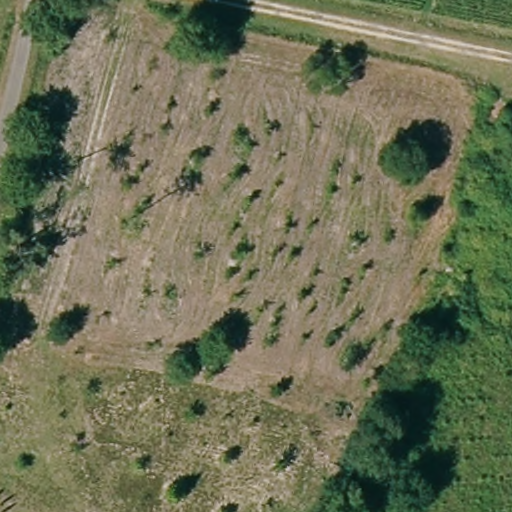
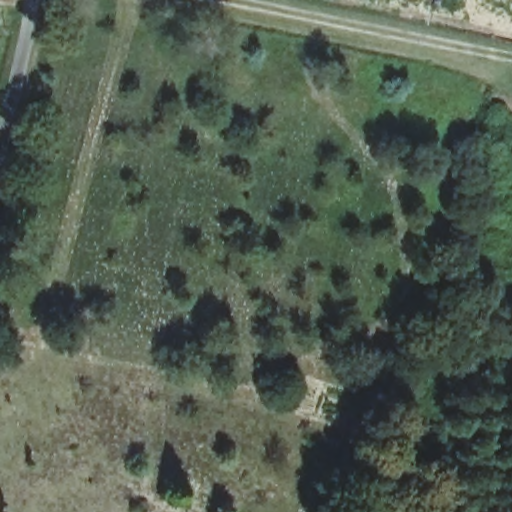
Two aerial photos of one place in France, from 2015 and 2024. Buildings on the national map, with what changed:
[]

